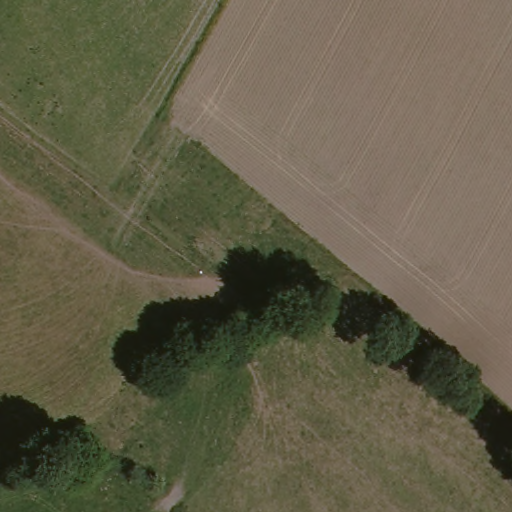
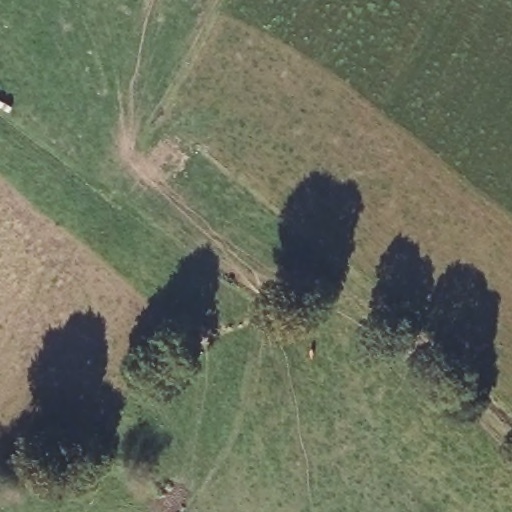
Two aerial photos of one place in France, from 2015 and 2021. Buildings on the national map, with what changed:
[]

